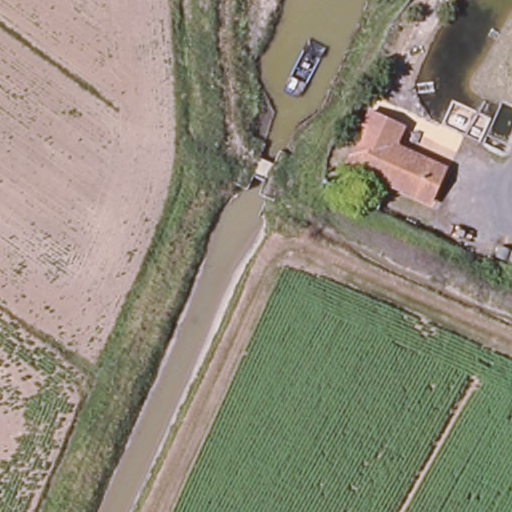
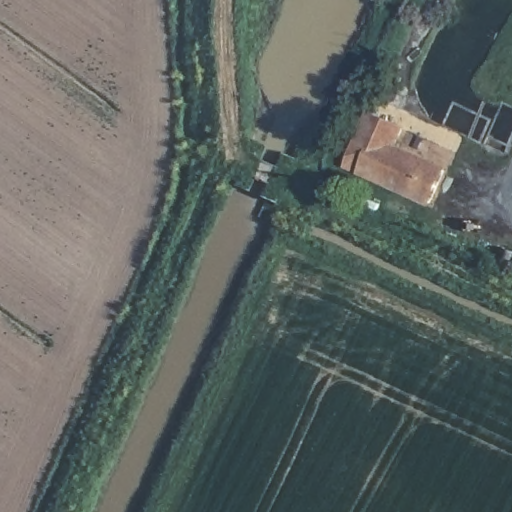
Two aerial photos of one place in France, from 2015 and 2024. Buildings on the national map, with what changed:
unchanged [(342,174),(366,117),(405,134),(397,151),(445,173),(428,212),(342,174)]

